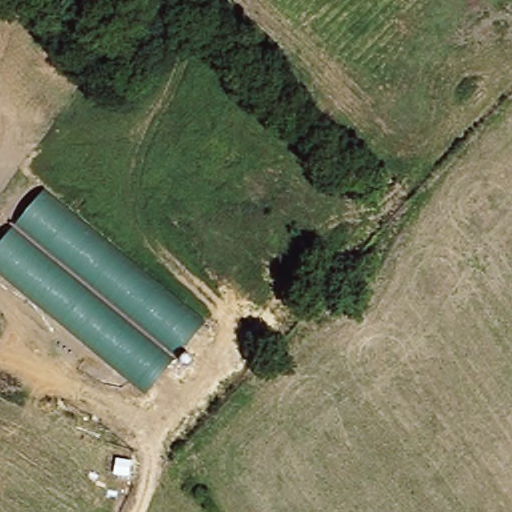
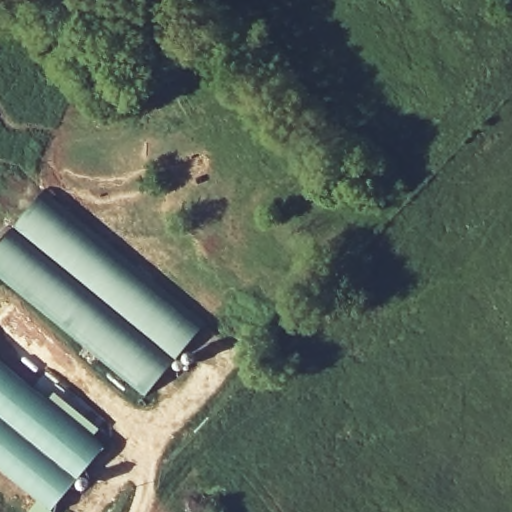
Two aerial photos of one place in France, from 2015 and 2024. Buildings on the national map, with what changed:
unchanged [(45,191),(205,321),(147,395),(0,273),(0,246),(45,191)]
new [(35,387),(47,396),(55,387),(101,427),(95,434),(106,444),(67,491),(52,512),(27,512),(37,502),(0,471),(0,360),(35,387)]

